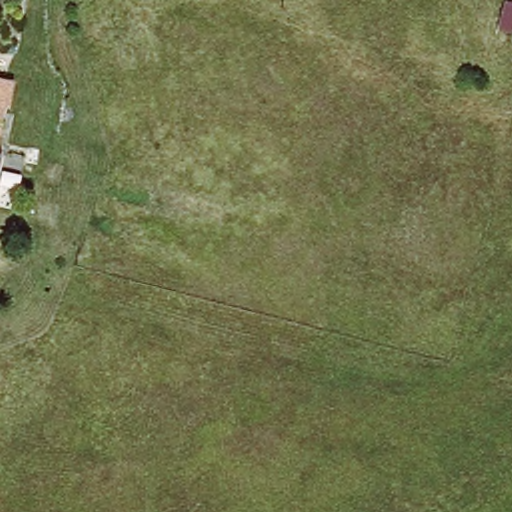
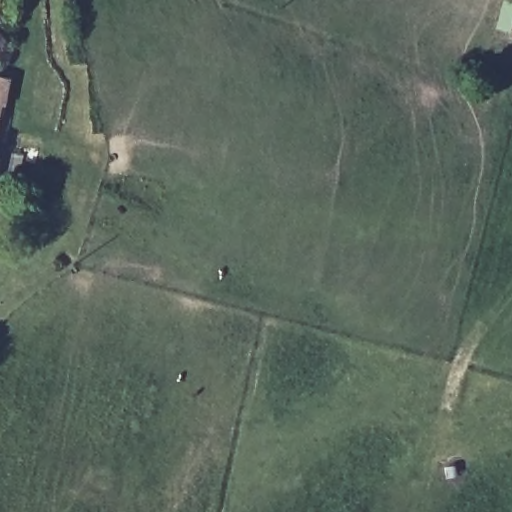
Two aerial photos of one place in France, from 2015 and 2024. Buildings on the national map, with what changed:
unchanged [(7,74),(0,107),(0,72),(7,74)]

